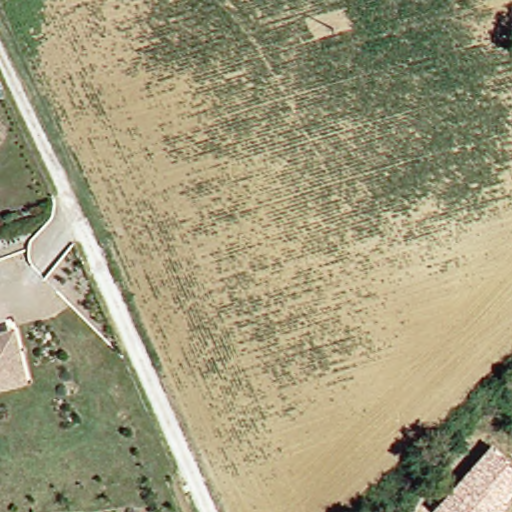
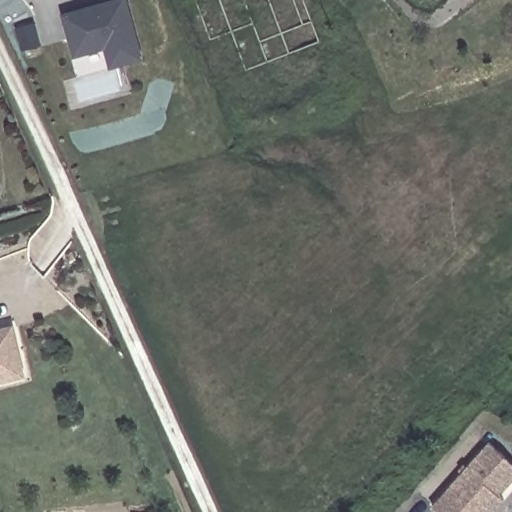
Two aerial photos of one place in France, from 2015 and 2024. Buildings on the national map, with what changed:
new [(144,60),(112,70),(105,51),(75,59),(62,16),(114,0),(129,0),(144,60)]
unchanged [(24,378),(0,383),(0,330),(13,327),(24,378)]
unchanged [(503,494),(507,500),(497,512),(435,512),(430,508),(489,440),(512,459),(512,485),(503,494)]

